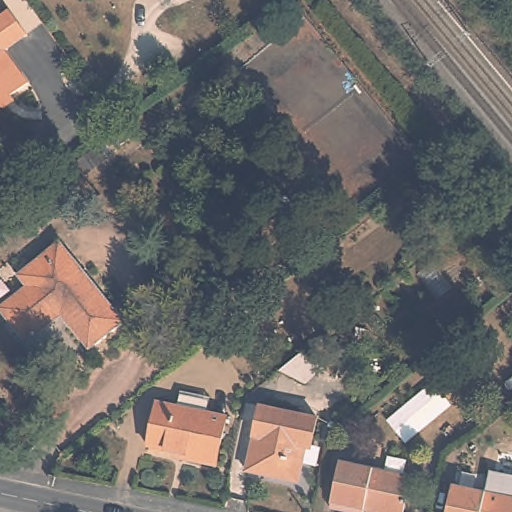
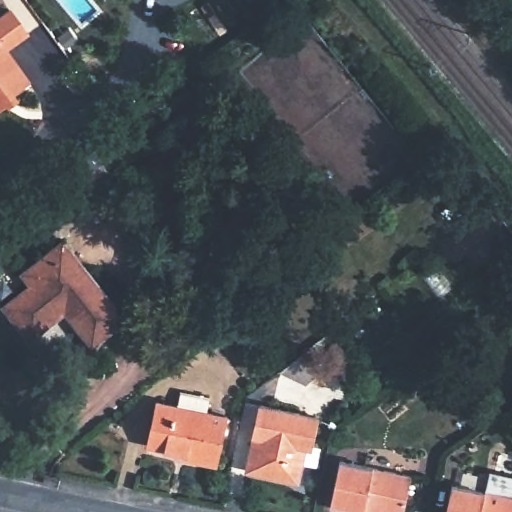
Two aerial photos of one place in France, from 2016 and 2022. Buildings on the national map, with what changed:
unchanged [(7,49),(29,81),(11,94),(5,93),(5,97),(5,100),(7,102),(0,107),(0,14),(11,7),(29,32),(7,49)]
unchanged [(61,241),(124,320),(90,346),(63,312),(26,339),(1,305),(28,283),(20,273),(61,241)]
unchanged [(311,342),(333,361),(309,383),(280,365),(311,342)]
unchanged [(223,415),(214,465),(182,458),(183,453),(146,445),(156,402),(223,415)]
unchanged [(318,416),(315,438),(308,437),(300,482),(245,471),(258,406),(318,416)]
unchanged [(409,472),(401,512),(393,512),(378,509),(379,505),(364,502),(361,511),(329,503),(338,458),(409,472)]
unchanged [(512,496),(512,512),(450,512),(456,485),(512,496)]

